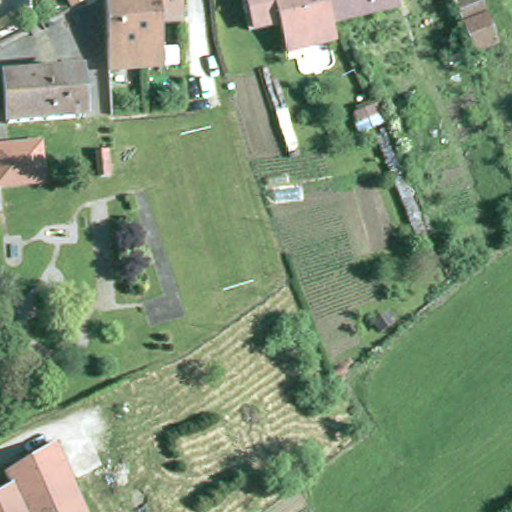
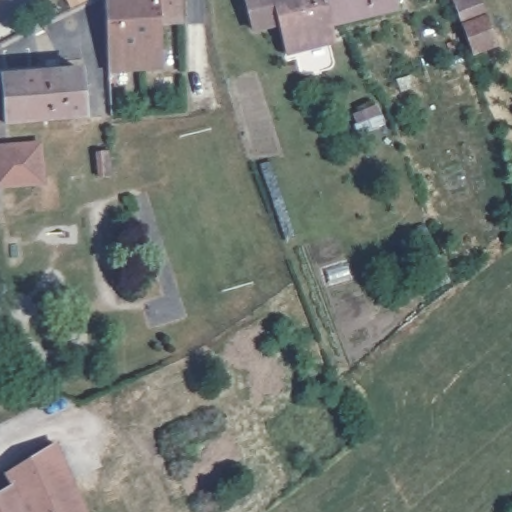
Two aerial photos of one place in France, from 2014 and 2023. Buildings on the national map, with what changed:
unchanged [(185,21),(175,21),(169,22),(164,22),(167,54),(167,65),(155,66),(114,68),(110,30),(110,26),(106,0),(184,0),(185,15),(185,21)]
unchanged [(277,21),(267,24),(249,26),(245,0),(324,0),(330,30),(330,35),(332,44),(320,46),(303,49),(285,52),(277,21)]
unchanged [(337,28),(330,30),(324,0),(396,0),(400,13),(337,28)]
unchanged [(476,0),(483,0),(499,50),(477,57),(460,4),(453,6),(451,0),(475,0),(475,1),(476,0)]
unchanged [(77,68),(85,115),(8,126),(1,79),(77,68)]
unchanged [(109,142),(112,168),(101,169),(97,144),(109,142)]
unchanged [(15,490),(6,472),(55,441),(89,512),(27,512),(15,490)]
unchanged [(27,512),(0,512),(0,498),(15,490),(27,512)]

